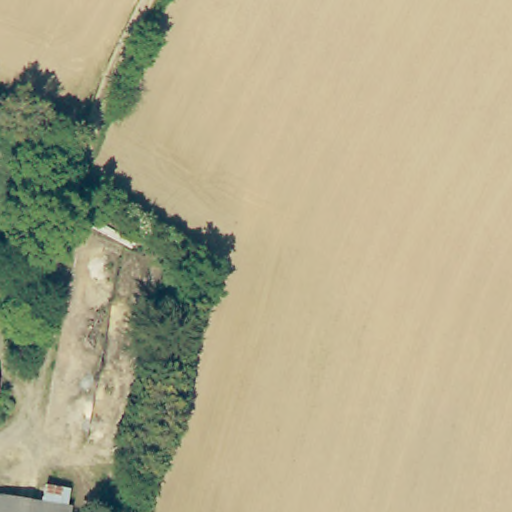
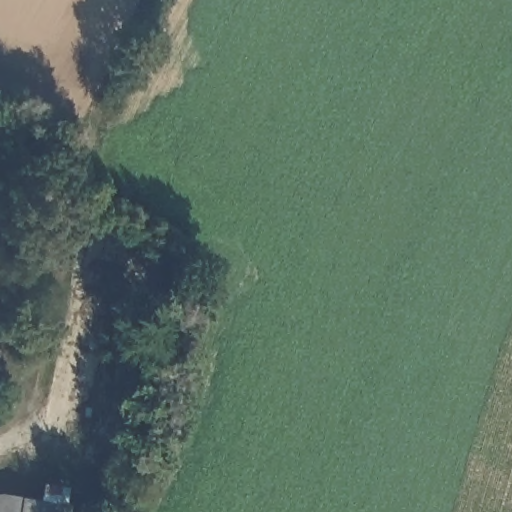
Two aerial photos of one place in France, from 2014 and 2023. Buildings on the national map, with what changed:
unchanged [(41,503),(44,485),(68,488),(64,512),(0,512),(0,498),(41,503)]

